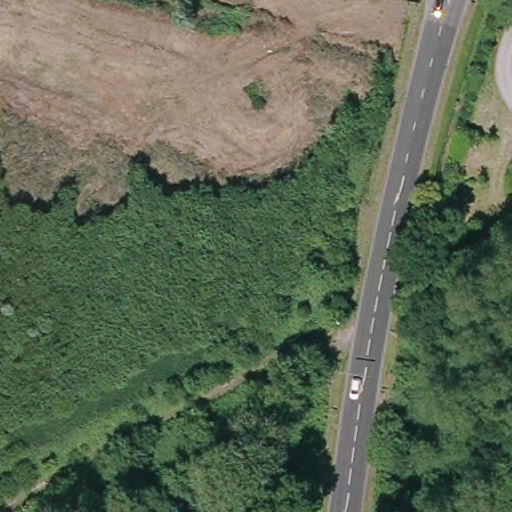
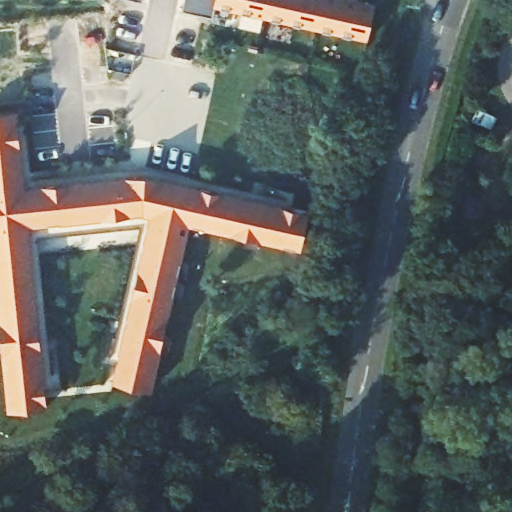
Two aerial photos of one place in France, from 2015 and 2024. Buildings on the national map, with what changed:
new [(176,7),(178,0),(208,0),(208,1),(208,0),(262,0),(259,13),(209,2),(207,14),(176,7)]
new [(308,24),(259,13),(262,0),(313,0),(308,24)]
new [(361,36),(308,24),(313,0),(369,0),(361,36)]
new [(18,183),(139,171),(285,203),(303,208),(295,245),(182,219),(144,385),(107,377),(145,210),(137,209),(22,221),(40,402),(2,405),(0,386),(0,108),(10,107),(18,183)]
new [(20,118),(25,174),(139,162),(287,196),(285,203),(139,171),(18,183),(12,119),(20,118)]
new [(22,221),(137,209),(145,210),(110,360),(103,358),(134,222),(32,232),(47,384),(39,385),(22,221)]

